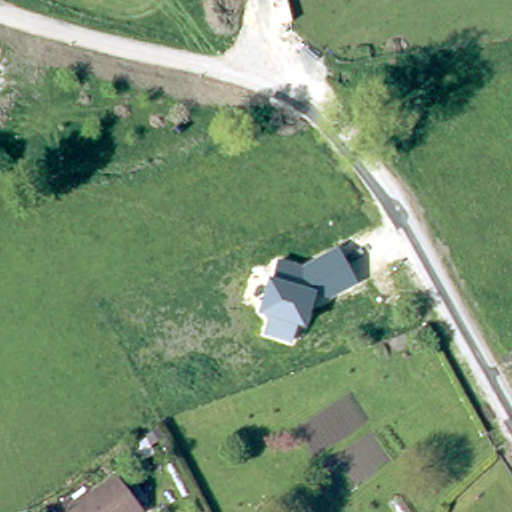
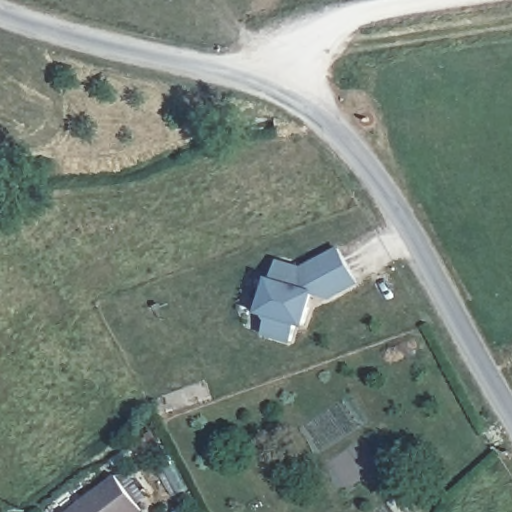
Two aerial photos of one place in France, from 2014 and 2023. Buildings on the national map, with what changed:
unchanged [(267,316),(259,313),(269,277),(272,278),(277,260),(302,267),(338,248),(357,284),(310,306),(304,327),(297,324),(292,343),(263,334),(267,316)]
unchanged [(142,512),(72,512),(117,476),(145,510),(142,512)]

